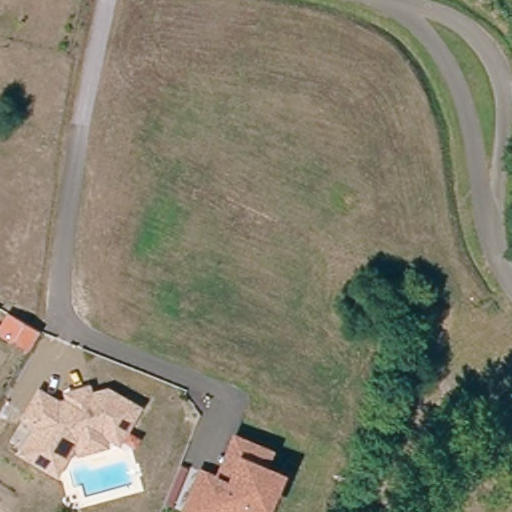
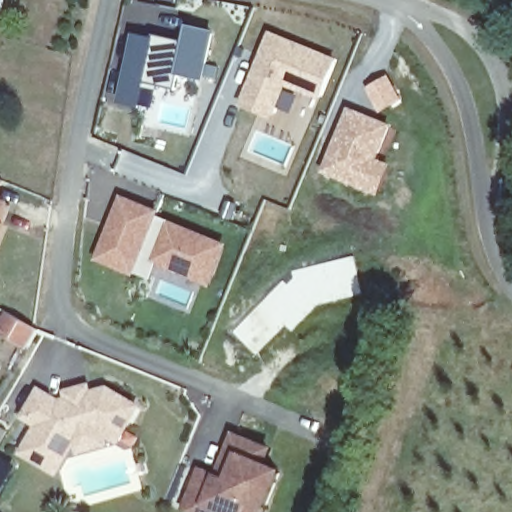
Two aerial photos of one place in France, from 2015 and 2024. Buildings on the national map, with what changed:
new [(156,37),(157,34),(185,40),(189,25),(217,30),(204,82),(181,76),(177,90),(147,82),(140,107),(118,102),(134,33),(156,37)]
new [(270,30),(337,57),(320,96),(295,86),(294,88),(288,85),(272,120),(239,107),(270,30)]
new [(388,73),(403,99),(381,112),(365,87),(388,73)]
new [(388,125),(365,186),(326,170),(351,110),(388,125)]
new [(161,211),(160,214),(230,243),(213,287),(157,263),(150,279),(137,270),(134,276),(94,260),(121,195),(161,211)]
unchanged [(82,450),(79,437),(59,471),(25,452),(41,424),(27,415),(41,390),(60,401),(72,398),(70,391),(90,386),(92,393),(108,388),(109,392),(114,390),(140,406),(121,440),(103,430),(107,444),(82,450)]
unchanged [(221,512),(190,512),(184,509),(199,470),(216,476),(232,434),(249,441),(267,448),(260,466),(277,473),(263,508),(262,512),(224,512),(222,511),(221,512)]

